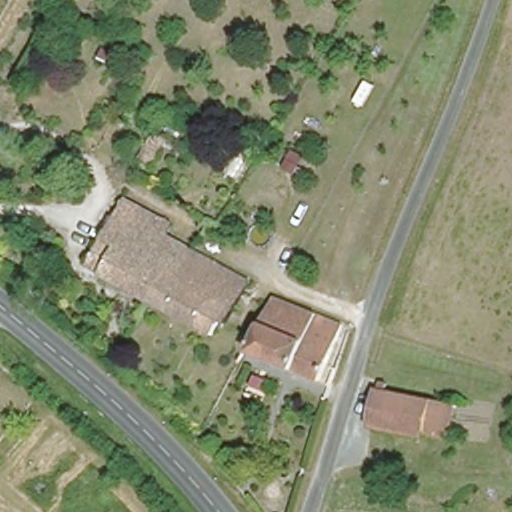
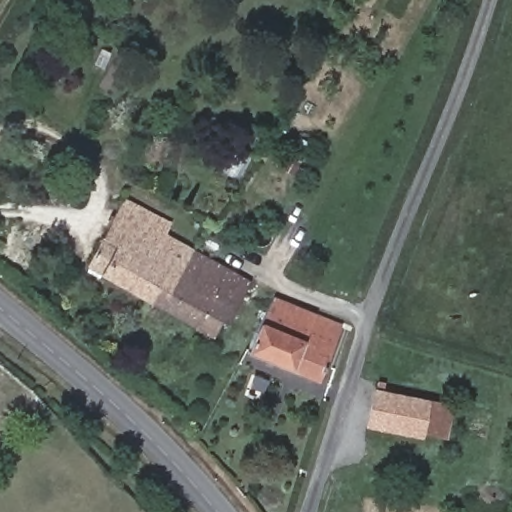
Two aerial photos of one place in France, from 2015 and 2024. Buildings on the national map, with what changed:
unchanged [(139,160),(153,136),(169,144),(154,167),(139,160)]
unchanged [(87,271),(93,262),(125,202),(167,226),(162,234),(181,245),(149,304),(87,271)]
unchanged [(221,327),(215,340),(149,304),(181,245),(193,253),(250,284),(226,329),(221,327)]
unchanged [(339,366),(332,387),(251,350),(276,294),(341,324),(326,362),(339,366)]
unchanged [(455,402),(446,442),(363,427),(379,388),(455,402)]

